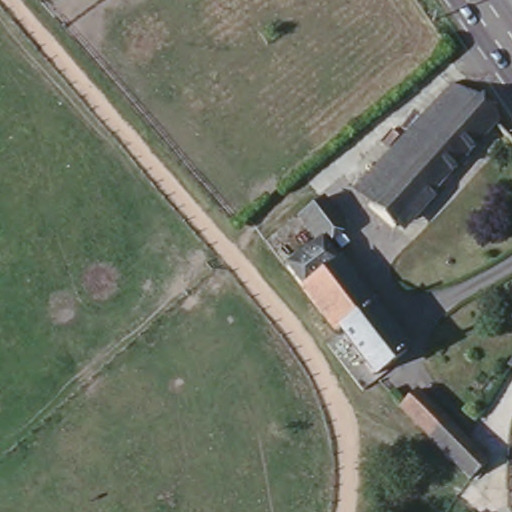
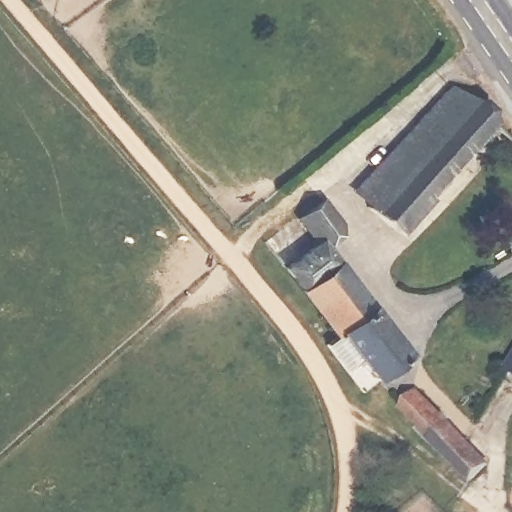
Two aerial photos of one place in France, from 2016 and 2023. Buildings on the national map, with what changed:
unchanged [(452,76),(472,95),(370,206),(352,187),(452,76)]
unchanged [(472,95),(493,116),(429,189),(433,192),(414,212),(409,209),(392,225),(370,206),(472,95)]
unchanged [(322,236),(306,214),(326,196),(343,222),(325,238),(410,345),(378,372),(348,335),(337,343),(328,331),(336,325),(318,299),(290,262),(322,236)]
unchanged [(512,373),(512,376),(511,375),(512,373)]
unchanged [(493,462),(478,478),(427,428),(404,406),(420,390),(443,413),(449,419),(493,462)]

